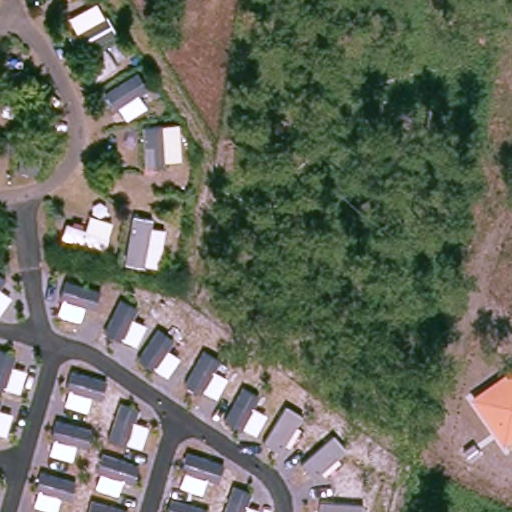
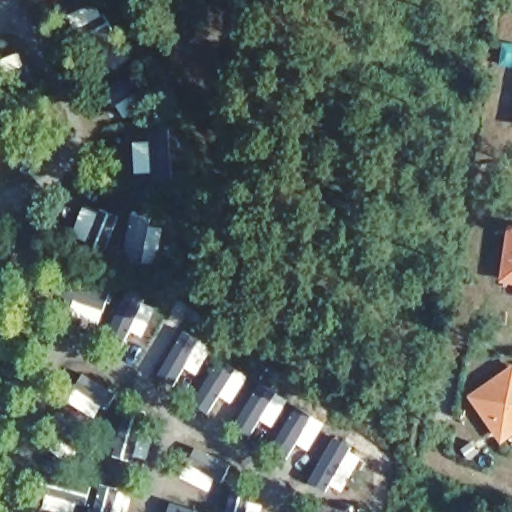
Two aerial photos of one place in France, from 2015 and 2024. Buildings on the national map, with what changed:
new [(502,281),(510,226),(512,226),(512,283),(502,281)]
unchanged [(504,445),(473,395),(512,368),(512,439),(504,445)]

